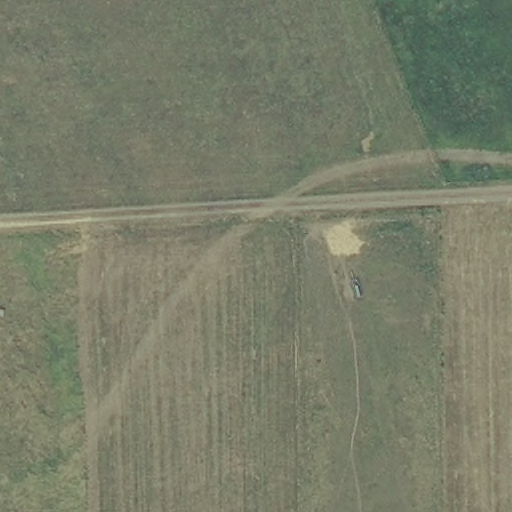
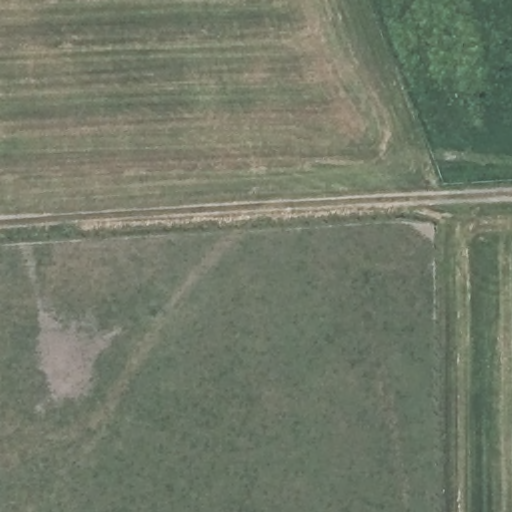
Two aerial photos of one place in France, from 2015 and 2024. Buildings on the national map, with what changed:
[]

